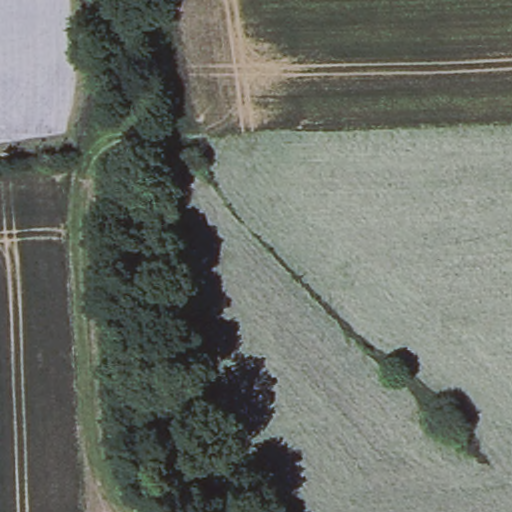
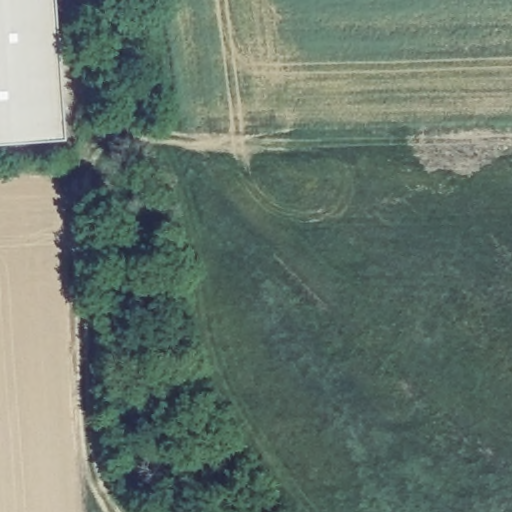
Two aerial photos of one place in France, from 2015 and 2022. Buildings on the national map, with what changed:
new [(66,142),(0,146),(0,0),(54,0),(66,142)]

